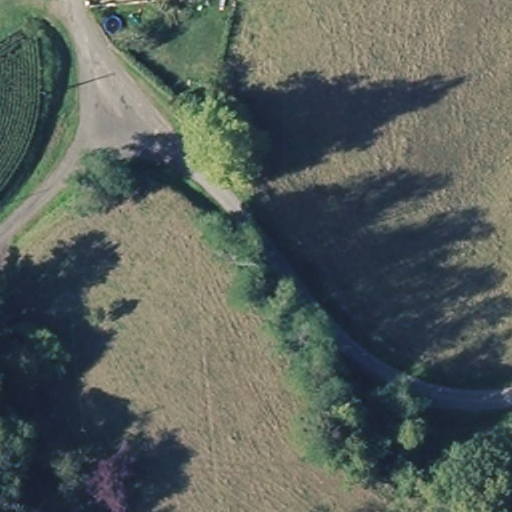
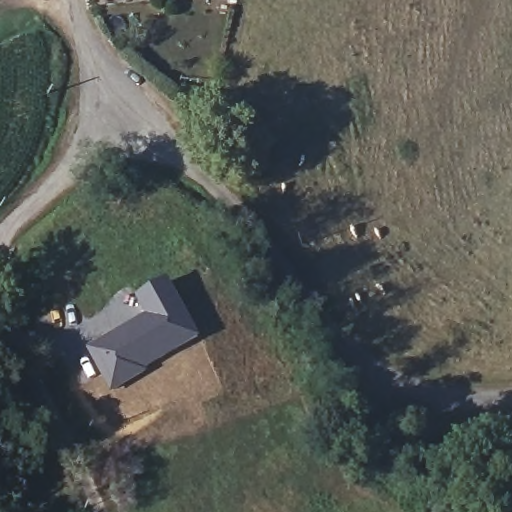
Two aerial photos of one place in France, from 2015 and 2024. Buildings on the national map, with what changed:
new [(145,312),(138,300),(171,280),(203,337),(158,363),(138,378),(110,392),(87,344),(145,312)]

